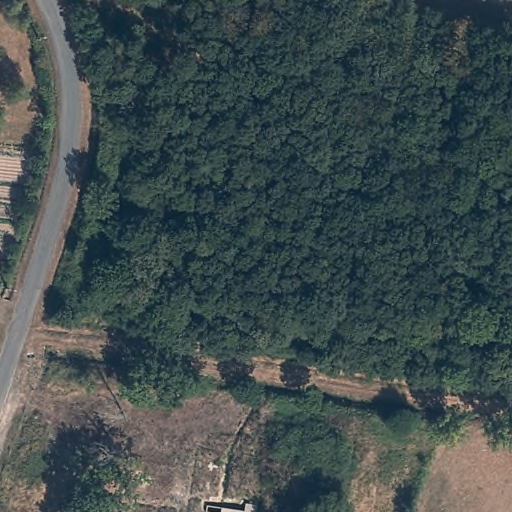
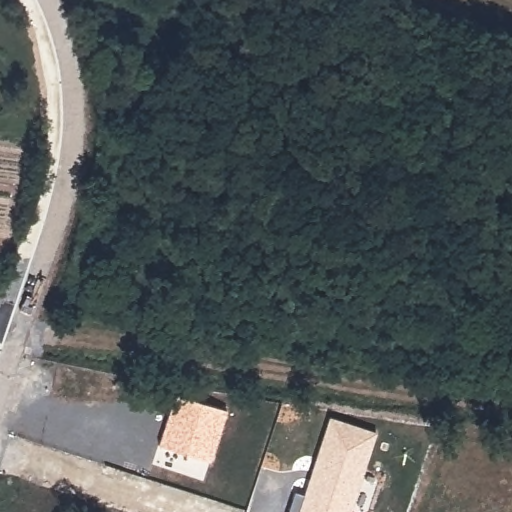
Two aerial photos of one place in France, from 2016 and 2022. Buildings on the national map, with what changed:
new [(175,392),(228,409),(212,462),(159,444),(175,392)]
new [(295,491),(305,495),(330,418),(376,433),(352,512),(288,512),(295,491)]

